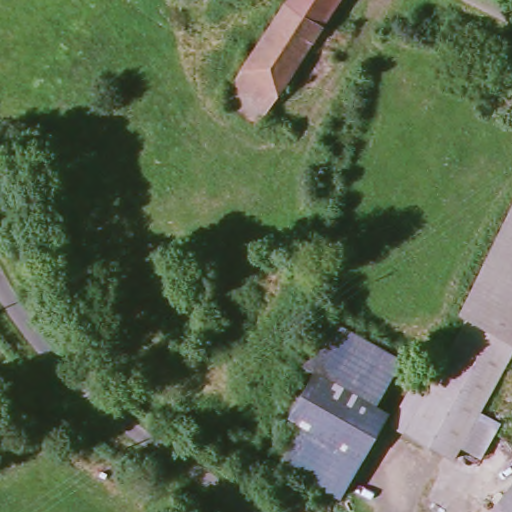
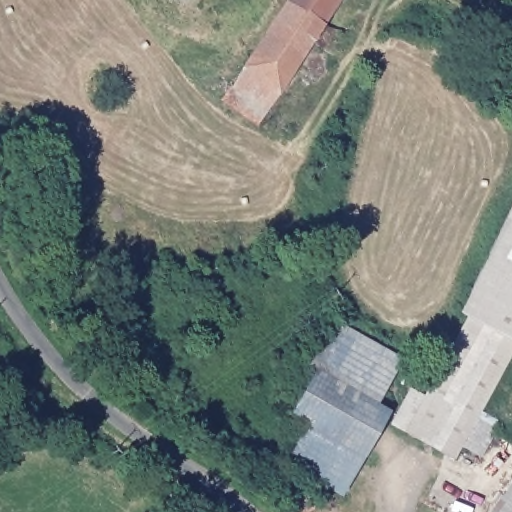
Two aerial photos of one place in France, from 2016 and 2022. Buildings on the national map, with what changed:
unchanged [(287,0),(339,0),(278,93),(241,68),(287,0)]
unchanged [(278,93),(257,123),(221,99),(241,68),(278,93)]
unchanged [(512,211),(512,334),(472,311),(465,307),(512,211)]
unchanged [(481,413),(499,427),(486,452),(466,441),(459,454),(396,419),(414,386),(428,393),(472,311),(512,334),(512,357),(481,413)]
unchanged [(307,360),(333,313),(407,354),(381,400),(319,366),(307,360)]
unchanged [(381,400),(393,407),(345,491),(286,457),(309,418),(294,410),(319,366),(381,400)]
unchanged [(290,512),(280,498),(303,481),(319,502),(306,512),(290,512)]
unchanged [(493,512),(512,486),(512,512),(493,512)]

